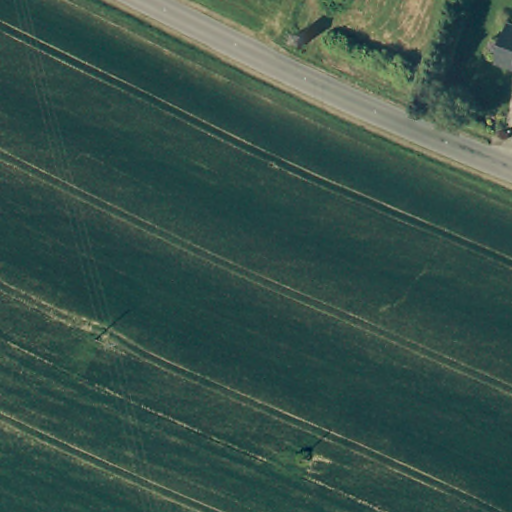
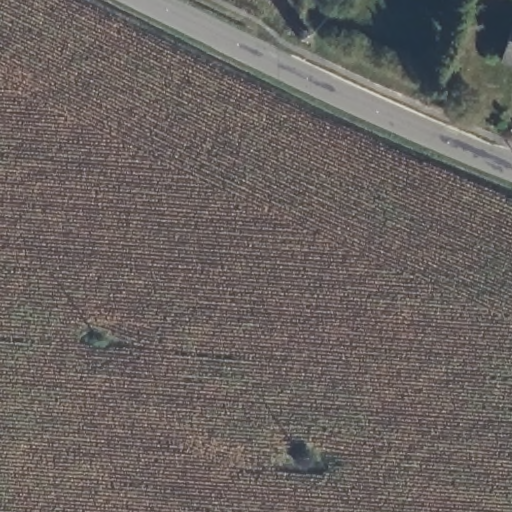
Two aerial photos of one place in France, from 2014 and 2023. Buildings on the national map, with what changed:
unchanged [(506,59),(512,44),(512,61),(506,59)]

